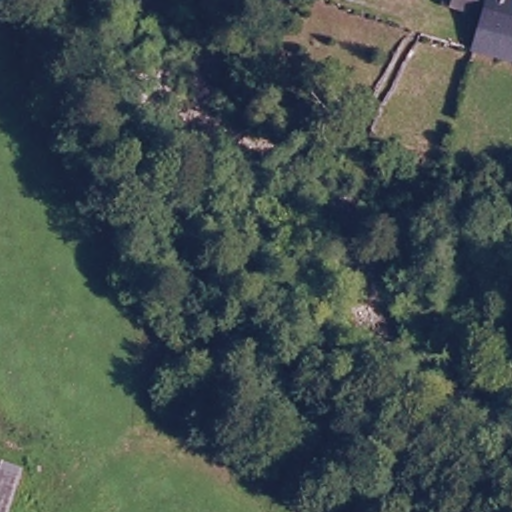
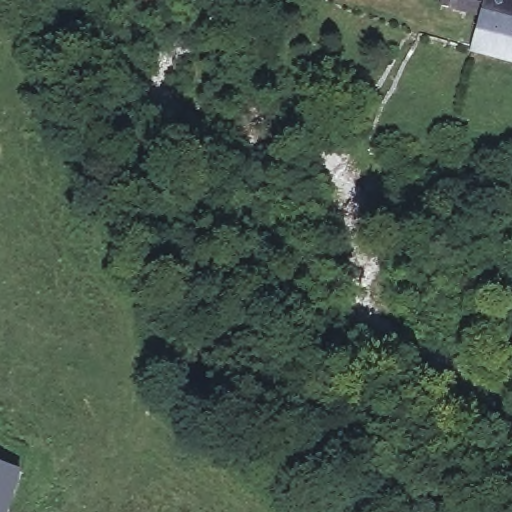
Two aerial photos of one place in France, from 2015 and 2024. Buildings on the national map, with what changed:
unchanged [(478,11),(438,3),(439,0),(512,0),(512,58),(478,49),(473,47),(478,11)]
unchanged [(19,467),(7,512),(0,512),(0,460),(19,467)]

